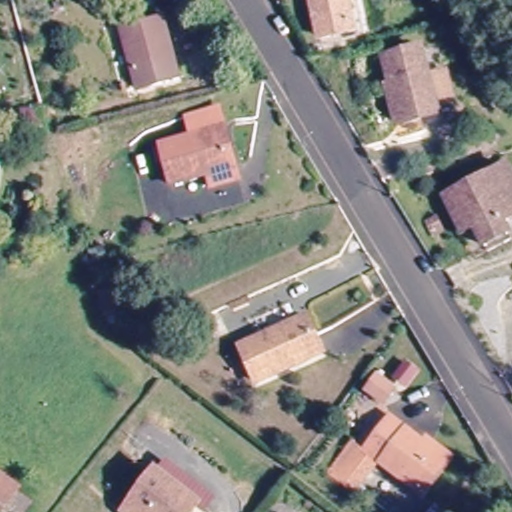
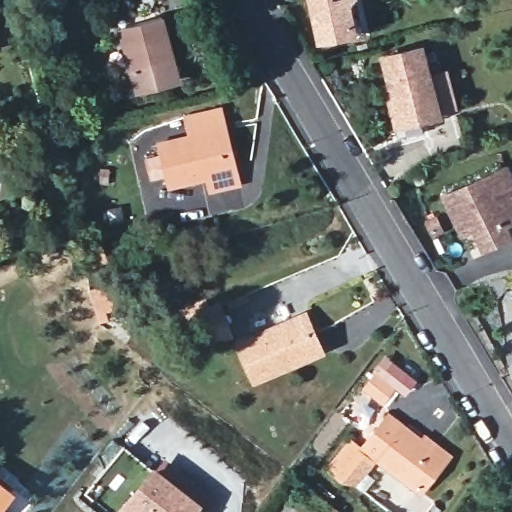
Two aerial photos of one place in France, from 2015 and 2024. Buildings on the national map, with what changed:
unchanged [(313,45),(303,0),(359,0),(366,31),(313,45)]
unchanged [(119,24),(161,11),(177,67),(133,78),(119,24)]
unchanged [(404,140),(400,126),(384,62),(424,50),(442,115),(422,121),(426,134),(404,140)]
unchanged [(210,179),(173,188),(163,146),(193,139),(187,120),(221,111),(240,185),(213,191),(210,179)]
unchanged [(439,188),(506,162),(512,176),(512,210),(496,216),(500,227),(476,237),(469,220),(451,226),(443,202),(439,188)]
unchanged [(116,302),(110,281),(134,274),(141,296),(116,302)]
unchanged [(257,376),(242,344),(305,314),(320,347),(257,376)]
unchanged [(419,369),(400,392),(395,389),(381,406),(362,389),(377,370),(390,379),(405,359),(419,369)]
unchanged [(422,436),(427,430),(449,450),(444,455),(416,487),(382,456),(368,444),(364,440),(392,410),(422,436)]
unchanged [(352,437),(361,444),(364,440),(368,444),(382,456),(376,465),(352,494),(325,471),(352,437)]
unchanged [(195,505),(190,512),(121,512),(153,472),(195,505)]
unchanged [(10,492),(0,505),(0,484),(10,492)]

